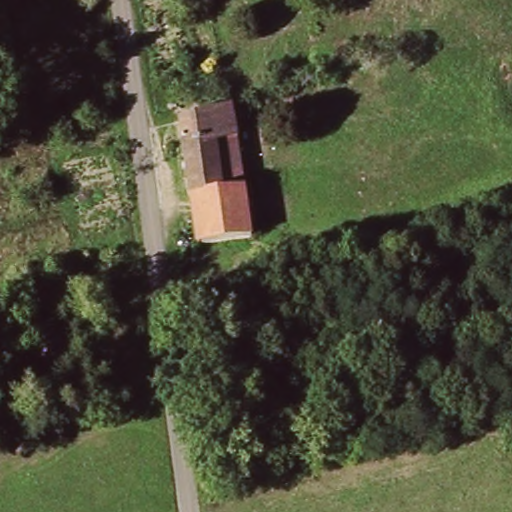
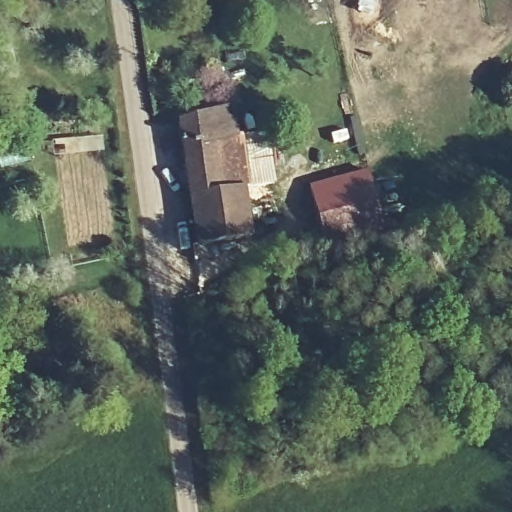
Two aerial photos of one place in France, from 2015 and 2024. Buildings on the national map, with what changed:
unchanged [(181,123),(233,112),(239,148),(184,158),(181,123)]
unchanged [(239,148),(244,190),(252,230),(200,240),(184,158),(239,148)]
new [(372,168),(389,233),(325,250),(309,185),(372,168)]

